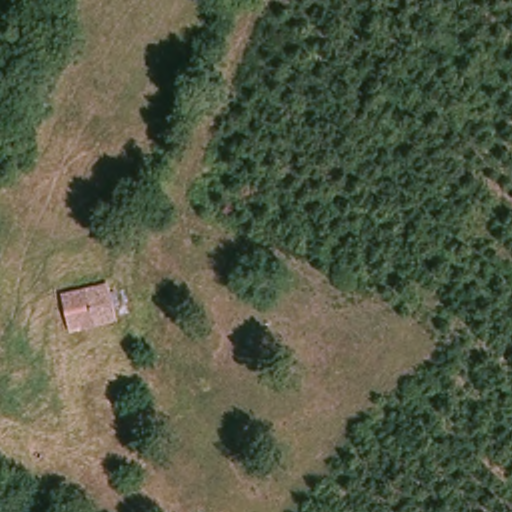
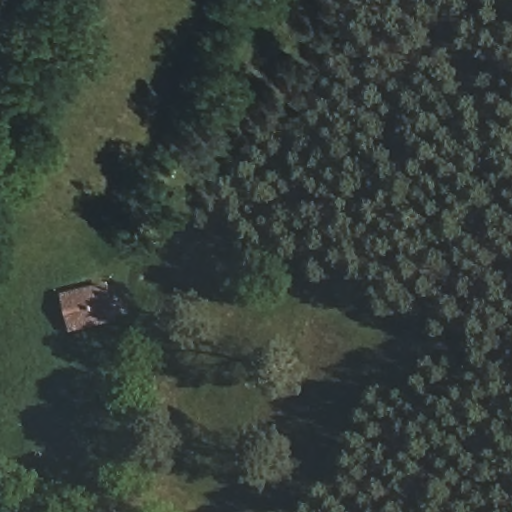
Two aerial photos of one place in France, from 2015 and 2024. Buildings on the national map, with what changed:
unchanged [(64,293),(108,285),(113,322),(69,330),(64,293)]

